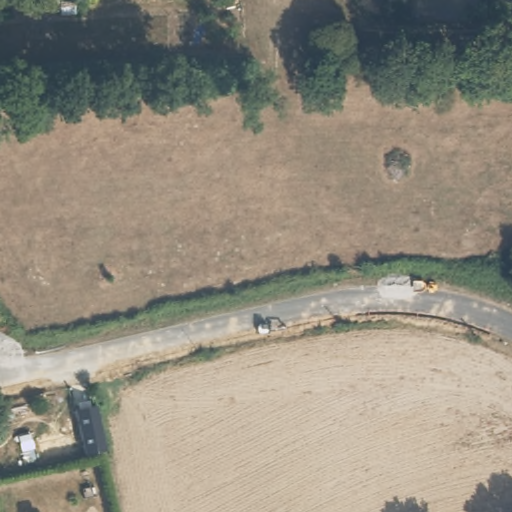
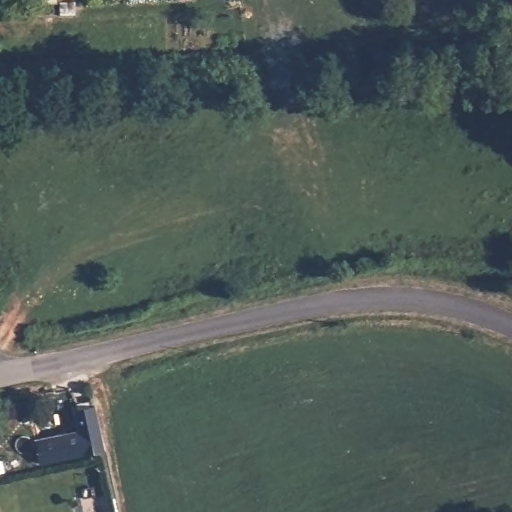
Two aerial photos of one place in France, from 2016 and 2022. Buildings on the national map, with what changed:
unchanged [(39,463),(35,442),(80,432),(75,409),(96,405),(106,450),(39,463)]

